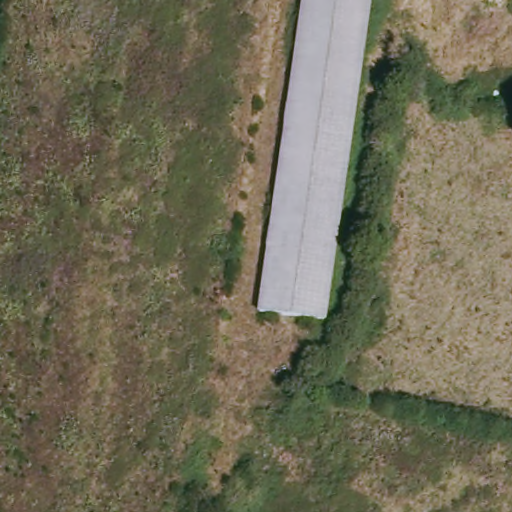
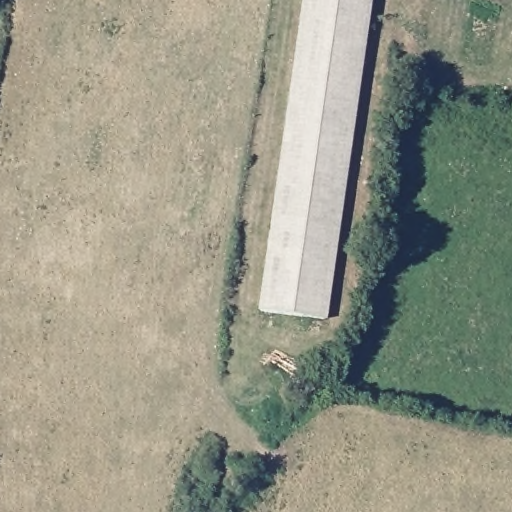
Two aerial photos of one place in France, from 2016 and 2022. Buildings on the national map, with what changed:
unchanged [(307,0),(367,0),(321,320),(263,309),(307,0)]

